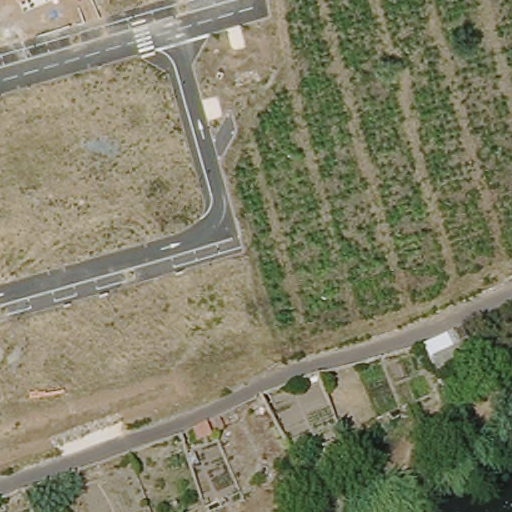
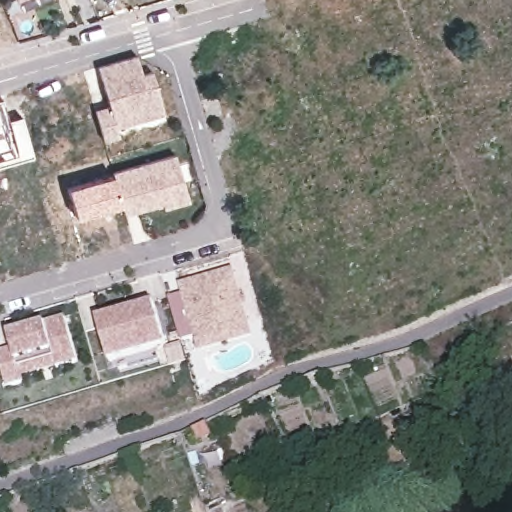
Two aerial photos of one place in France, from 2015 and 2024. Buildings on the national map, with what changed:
unchanged [(23,0),(17,3),(16,0),(23,0)]
new [(104,141),(94,111),(109,104),(98,66),(137,56),(142,74),(152,71),(162,115),(117,126),(119,136),(104,141)]
new [(5,118),(20,115),(32,156),(0,165),(0,102),(5,118)]
new [(163,211),(162,205),(125,215),(113,173),(175,155),(189,203),(163,211)]
new [(114,175),(122,205),(75,219),(67,188),(114,175)]
new [(178,284),(232,267),(254,337),(200,354),(194,337),(180,341),(167,297),(180,293),(178,284)]
new [(110,362),(98,318),(155,303),(167,347),(110,362)]
new [(22,377),(24,385),(8,388),(0,356),(0,352),(13,347),(10,334),(47,323),(65,317),(78,363),(22,377)]
unchanged [(470,330),(479,364),(434,381),(425,345),(470,330)]
unchanged [(214,423),(225,418),(230,426),(219,431),(220,436),(207,443),(200,431),(214,423)]
unchanged [(2,512),(0,512),(0,506),(2,512)]

